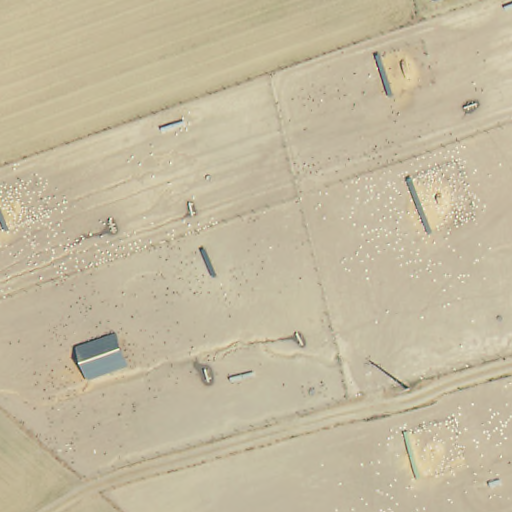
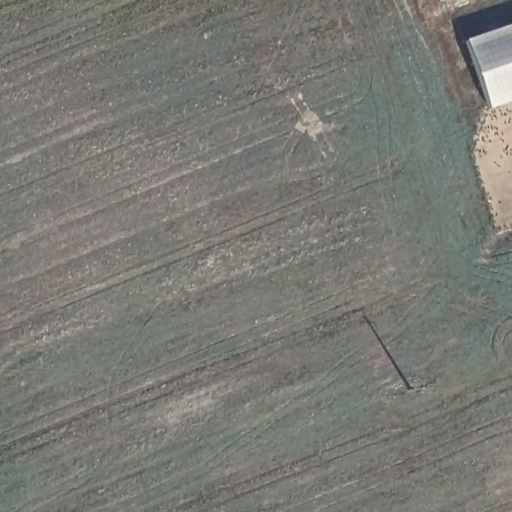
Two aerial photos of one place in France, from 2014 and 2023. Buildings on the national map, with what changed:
new [(463,40),(512,23),(512,103),(488,111),(463,40)]

